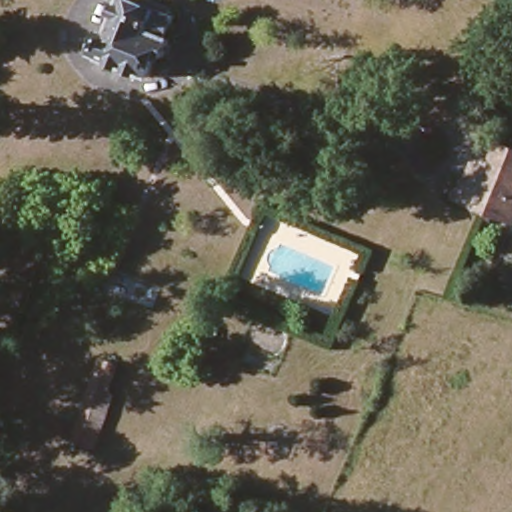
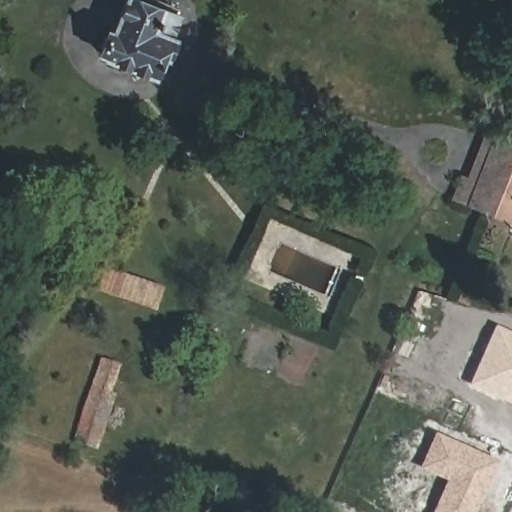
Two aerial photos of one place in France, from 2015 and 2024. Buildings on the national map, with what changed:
unchanged [(167,32),(171,34),(164,52),(160,51),(151,72),(101,53),(102,50),(96,48),(104,25),(111,28),(121,0),(163,0),(171,3),(169,9),(175,11),(167,32)]
unchanged [(511,53),(512,54),(512,66),(506,63),(511,53)]
unchanged [(512,181),(507,195),(502,193),(495,213),(472,203),(460,199),(457,198),(466,176),(470,177),(473,179),(489,139),(496,142),(512,148),(512,160),(509,168),(512,169),(512,181)]
unchanged [(512,160),(512,169),(509,168),(512,160)]
unchanged [(502,193),(507,195),(512,181),(512,220),(495,213),(502,193)]
new [(164,288),(155,312),(99,291),(107,267),(164,288)]
new [(495,325),(512,333),(512,406),(470,385),(495,325)]
unchanged [(93,452),(73,446),(101,365),(117,370),(107,399),(111,400),(93,452)]
new [(420,470),(435,433),(497,461),(476,512),(433,512),(446,481),(420,470)]

